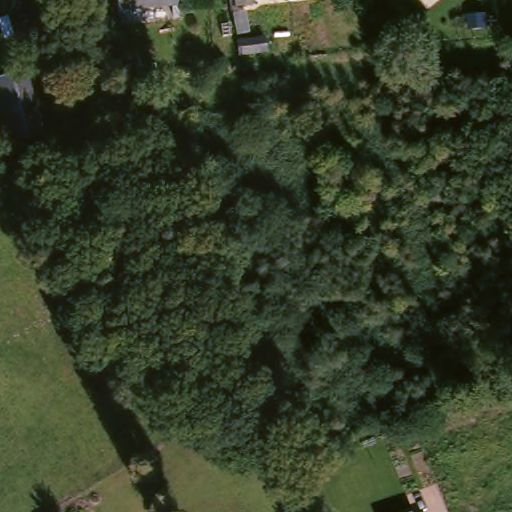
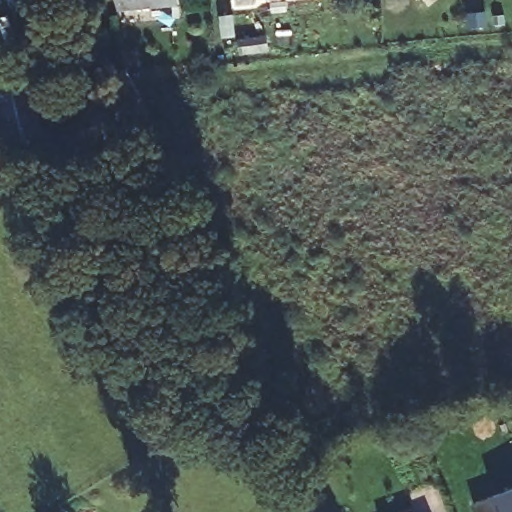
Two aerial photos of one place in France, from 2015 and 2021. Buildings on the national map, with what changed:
unchanged [(128,8),(127,0),(185,0),(185,3),(128,8)]
unchanged [(6,144),(0,109),(0,78),(40,70),(51,130),(6,144)]
new [(473,502),(494,495),(495,496),(512,489),(512,512),(476,512),(473,502)]

